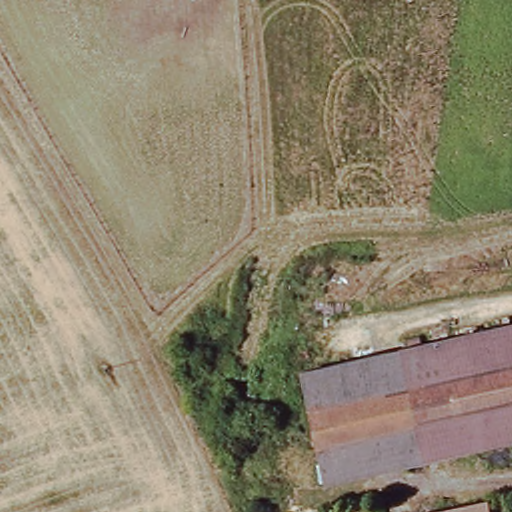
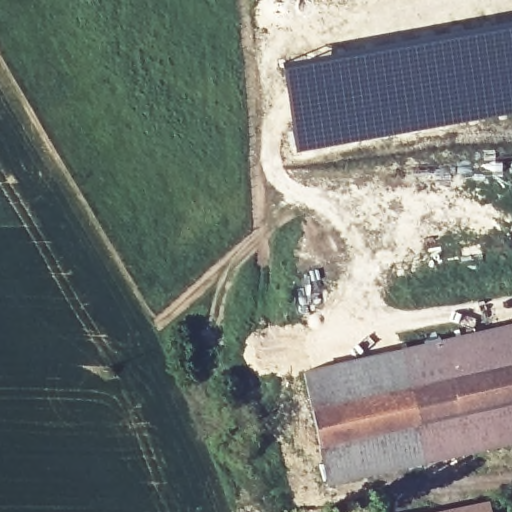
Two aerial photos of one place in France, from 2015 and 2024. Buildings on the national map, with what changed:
new [(455,35),(512,25),(512,114),(296,152),(280,62),(340,55),(455,35)]
demolished [(512,277),(341,313),(331,272),(512,235),(512,277)]
unchanged [(512,328),(512,437),(325,483),(299,381),(512,328)]
unchanged [(505,506),(507,512),(440,512),(484,500),(486,510),(505,506)]

